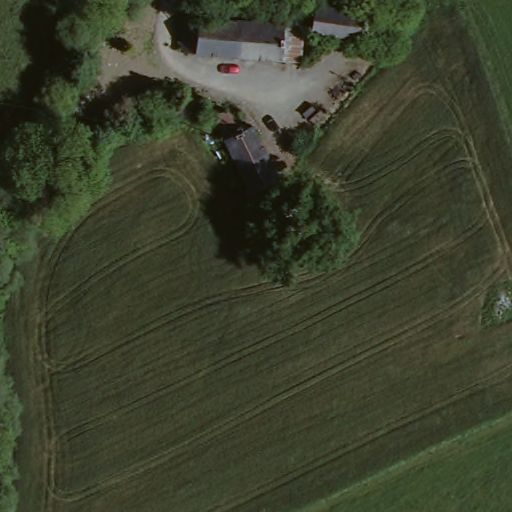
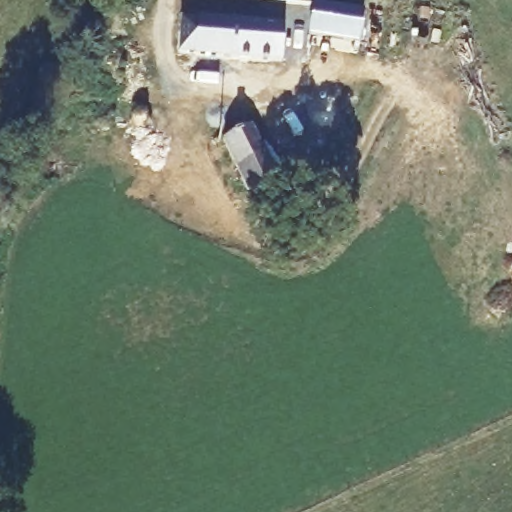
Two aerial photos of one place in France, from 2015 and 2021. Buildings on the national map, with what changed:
unchanged [(317,2),(365,9),(361,44),(314,36),(317,2)]
unchanged [(184,20),(197,20),(197,18),(286,23),(285,60),(196,56),(196,51),(183,51),(184,20)]
unchanged [(251,120),(275,179),(245,192),(219,133),(251,120)]

